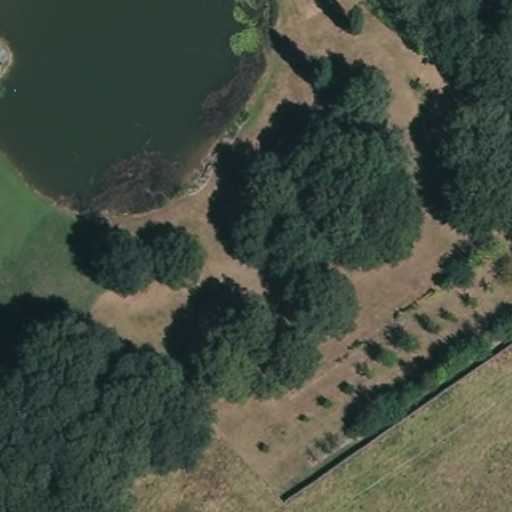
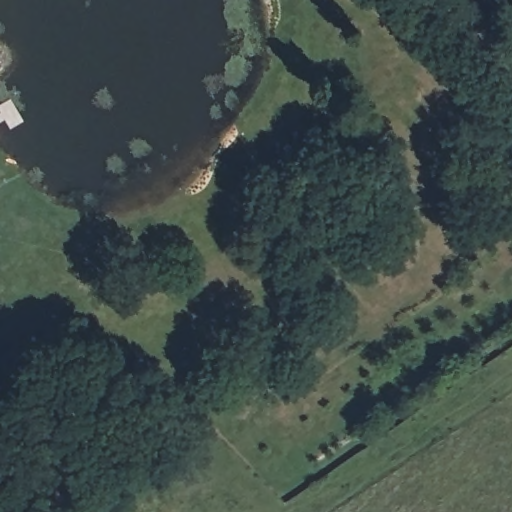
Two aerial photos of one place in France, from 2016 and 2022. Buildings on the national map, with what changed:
[]

